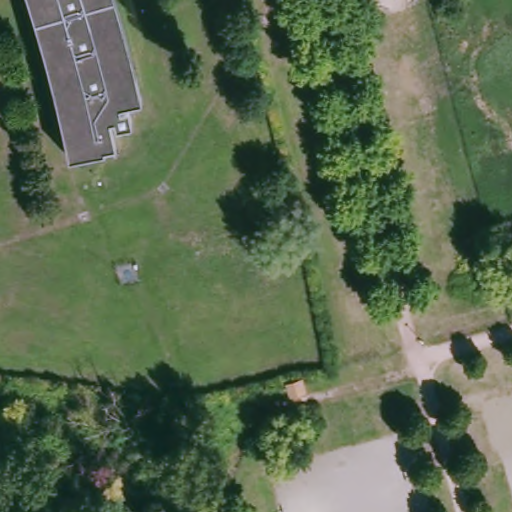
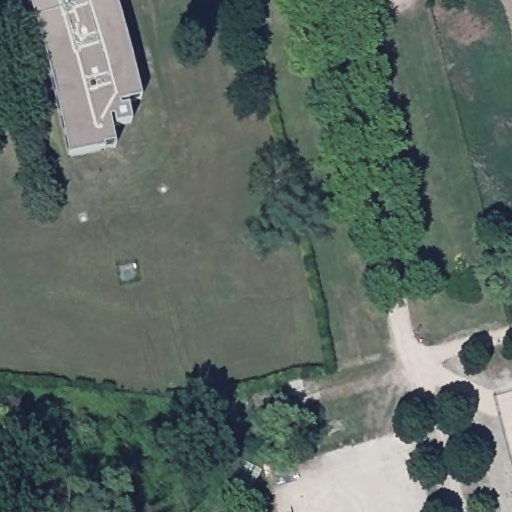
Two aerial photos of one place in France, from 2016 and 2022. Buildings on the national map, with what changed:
unchanged [(135,72),(142,102),(119,107),(121,111),(129,109),(133,125),(116,129),(114,120),(79,127),(69,83),(66,72),(62,57),(70,54),(57,8),(54,0),(114,0),(127,41),(135,72)]
unchanged [(309,392),(292,397),(289,387),(306,382),(309,392)]

